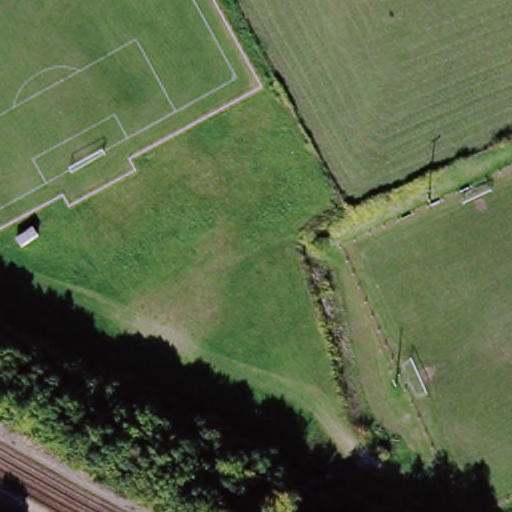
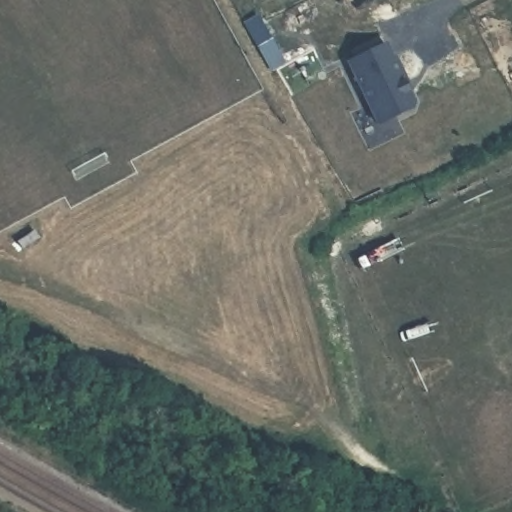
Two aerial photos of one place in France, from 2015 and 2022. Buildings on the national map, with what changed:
new [(417,105),(376,125),(346,61),(387,42),(417,105)]

